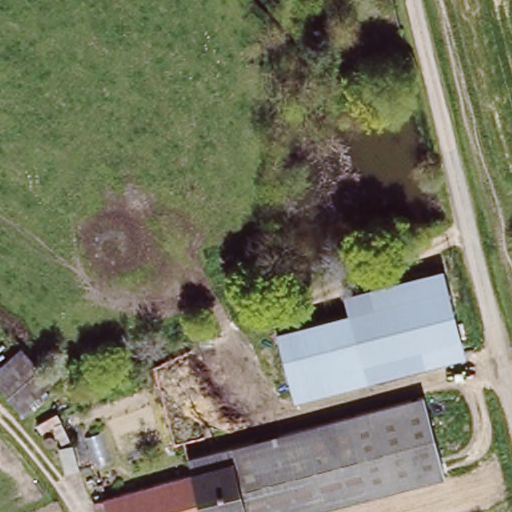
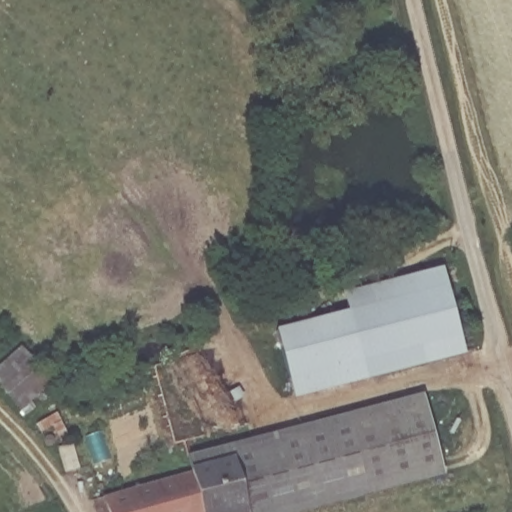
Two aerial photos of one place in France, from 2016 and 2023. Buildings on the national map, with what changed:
unchanged [(441,265),(464,348),(369,376),(348,310),(343,293),(441,265)]
unchanged [(348,310),(369,376),(294,397),(276,331),(348,310)]
unchanged [(90,500),(228,464),(226,451),(418,398),(438,477),(309,512),(93,512),(90,500)]
unchanged [(78,443),(81,466),(68,468),(63,444),(78,443)]

